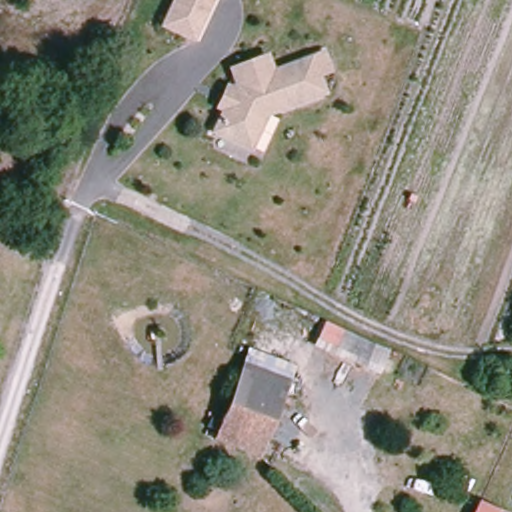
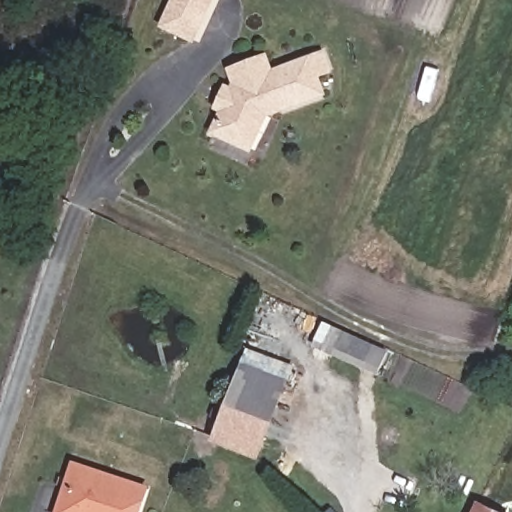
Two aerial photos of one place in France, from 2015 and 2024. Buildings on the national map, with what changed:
unchanged [(169,25),(180,0),(216,0),(199,38),(169,25)]
unchanged [(221,108),(233,84),(239,87),(233,71),(270,58),(276,74),(327,56),(333,73),(321,77),(327,96),(270,116),(253,150),(217,133),(227,111),(221,108)]
unchanged [(374,347),(365,370),(313,349),(325,323),(374,347)]
unchanged [(247,352),(292,371),(260,455),(253,453),(216,436),(247,352)]
new [(151,487),(142,512),(57,512),(71,462),(151,487)]
unchanged [(504,512),(474,512),(479,502),(504,512)]

